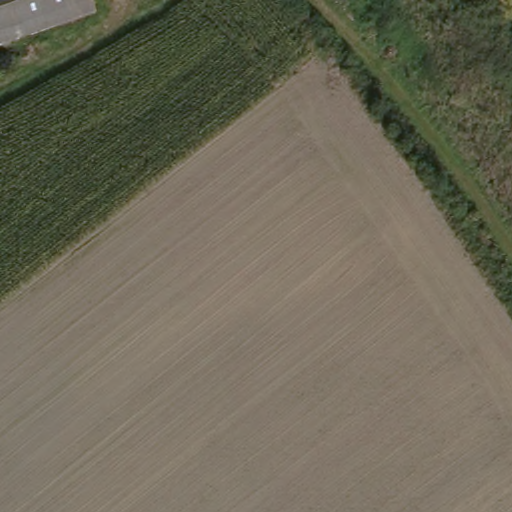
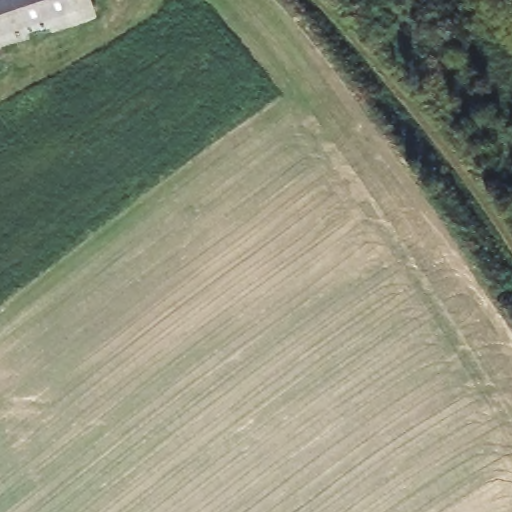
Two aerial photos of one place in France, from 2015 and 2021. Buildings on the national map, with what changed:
unchanged [(95,19),(0,51),(0,0),(89,0),(95,19)]

